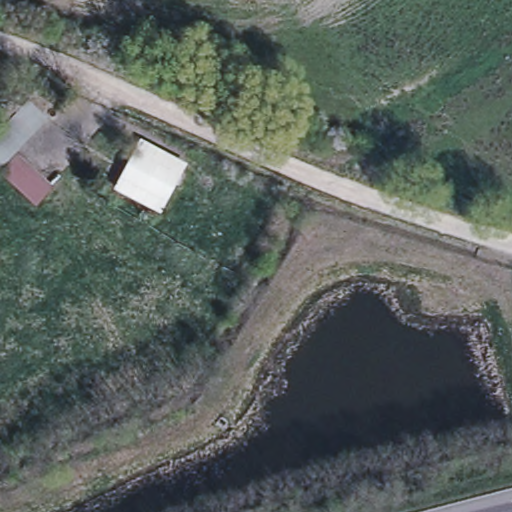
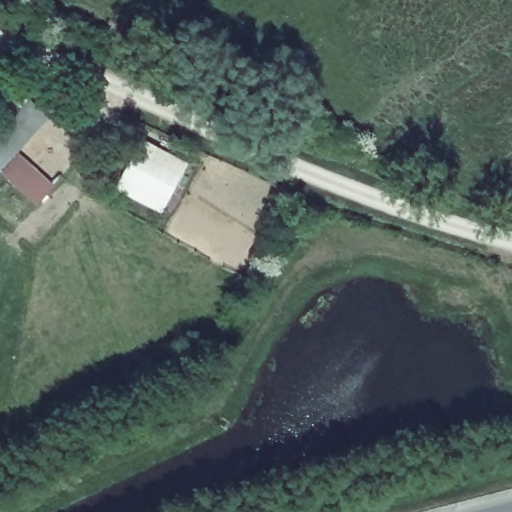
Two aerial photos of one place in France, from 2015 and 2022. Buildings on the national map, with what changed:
unchanged [(0,169),(0,117),(21,95),(47,120),(0,169)]
unchanged [(141,145),(187,166),(176,190),(130,169),(141,145)]
unchanged [(16,159),(50,192),(36,207),(2,174),(16,159)]
unchanged [(176,190),(165,214),(119,192),(130,169),(176,190)]

